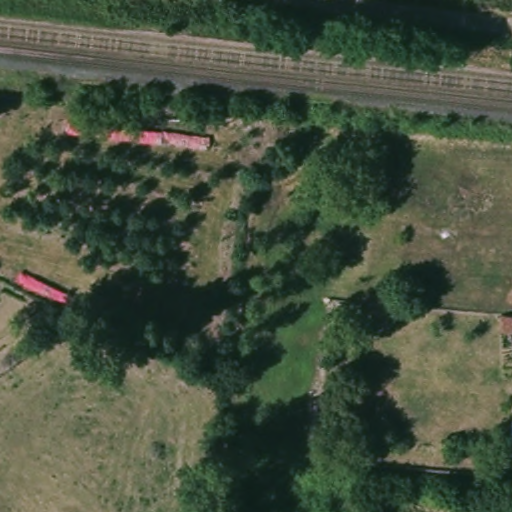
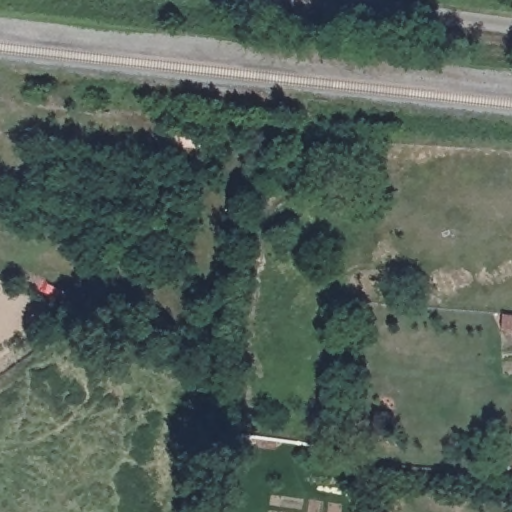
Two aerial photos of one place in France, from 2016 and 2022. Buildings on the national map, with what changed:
unchanged [(512,330),(502,329),(503,314),(503,313),(512,314),(512,330)]

